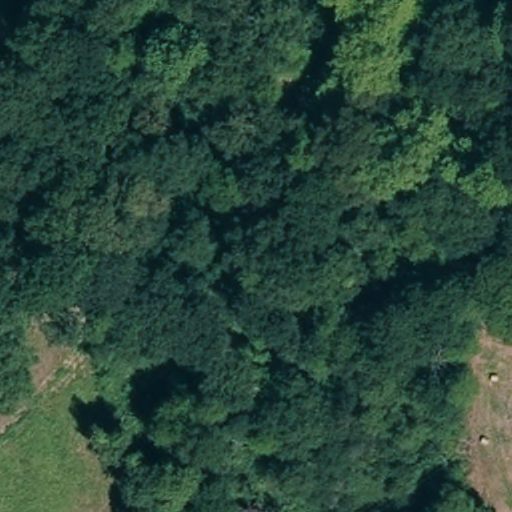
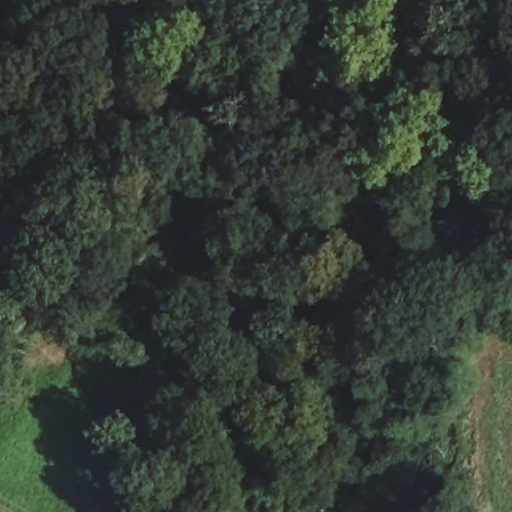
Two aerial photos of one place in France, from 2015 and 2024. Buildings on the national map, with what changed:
[]

